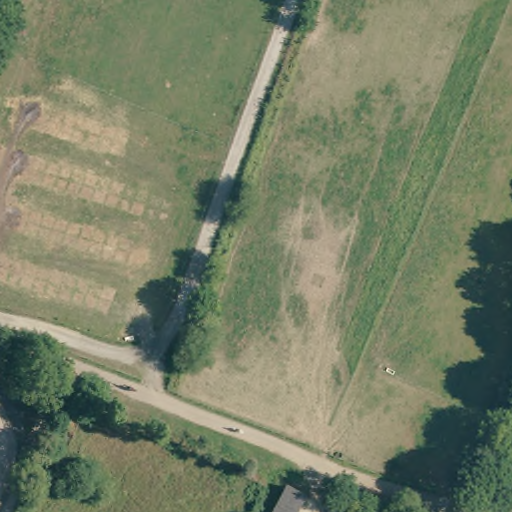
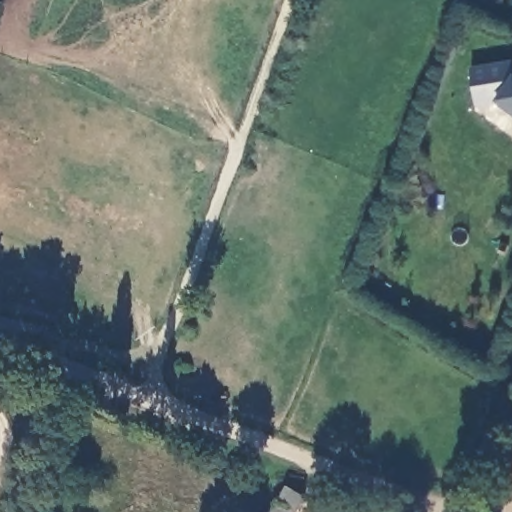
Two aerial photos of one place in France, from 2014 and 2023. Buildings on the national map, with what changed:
new [(497,104),(477,107),(470,69),(511,62),(512,65),(512,114),(497,104)]
unchanged [(307,498),(300,512),(271,512),(283,486),(286,487),(307,498)]

